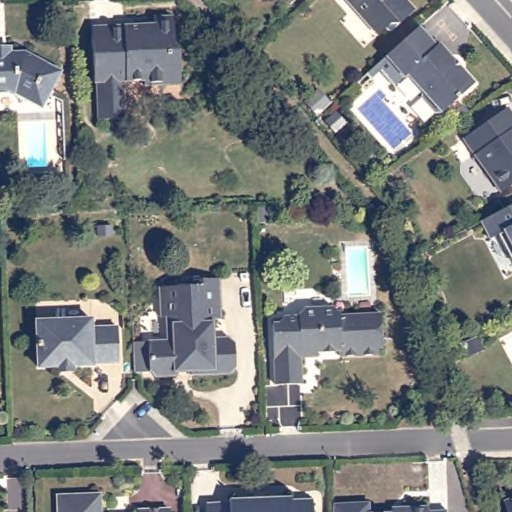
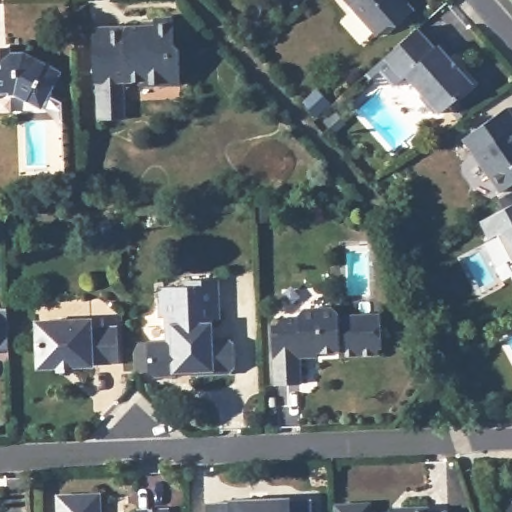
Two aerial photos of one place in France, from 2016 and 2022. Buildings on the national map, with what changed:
unchanged [(418,8),(402,23),(392,22),(380,33),(351,0),(411,0),(418,8)]
unchanged [(97,127),(95,89),(92,89),(90,35),(151,32),(152,23),(169,23),(170,50),(177,56),(177,92),(141,93),(141,87),(121,88),(122,127),(97,127)]
unchanged [(373,65),(374,65),(383,56),(416,27),(435,47),(437,44),(473,83),(441,112),(435,112),(422,98),(422,91),(406,73),(392,85),(377,69),(367,77),(364,73),(370,68),(373,65)]
unchanged [(19,89),(0,89),(0,49),(27,48),(62,67),(49,91),(43,103),(27,94),(19,89)]
unchanged [(505,110),(512,120),(512,184),(499,193),(462,139),(505,110)]
unchanged [(512,203),(512,258),(511,259),(497,233),(488,237),(480,220),(512,203)]
unchanged [(169,381),(153,382),(147,376),(146,347),(168,346),(167,323),(160,323),(158,293),(184,292),(184,285),(216,283),(217,324),(209,324),(210,342),(227,342),(233,347),(234,373),(228,378),(190,380),(175,380),(169,381)]
unchanged [(297,361),(298,388),(273,388),(271,328),(274,328),(280,321),(295,321),(295,317),(300,311),(329,311),(336,317),(336,319),(379,318),(380,350),(375,350),(375,358),(336,360),(337,354),(314,355),(314,361),(297,361)]
unchanged [(90,320),(90,329),(116,329),(117,362),(91,363),(91,366),(37,368),(35,322),(90,320)]
unchanged [(93,494),(94,512),(54,512),(53,496),(93,494)]
unchanged [(226,499),(288,497),(288,500),(310,499),(311,512),(205,512),(204,503),(226,502),(226,499)]
unchanged [(506,512),(503,503),(512,499),(512,512),(506,512)]
unchanged [(369,506),(369,512),(333,512),(333,508),(369,506)]
unchanged [(162,507),(162,512),(130,512),(130,509),(162,507)]
unchanged [(428,511),(429,512),(410,512),(410,511),(428,511)]

